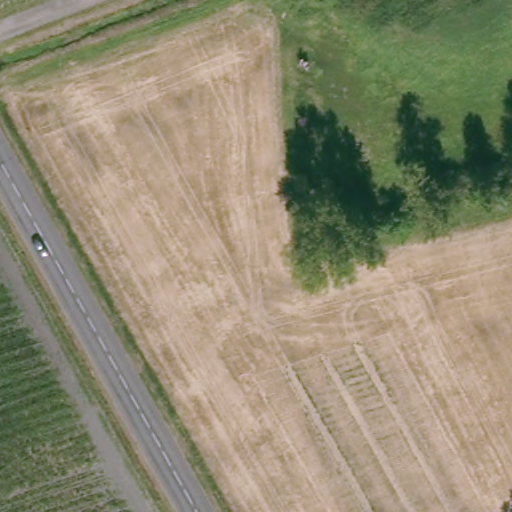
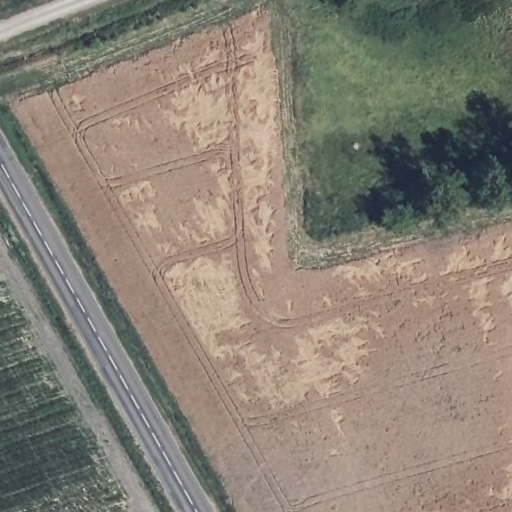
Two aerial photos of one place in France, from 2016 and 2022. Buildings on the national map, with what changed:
[]

